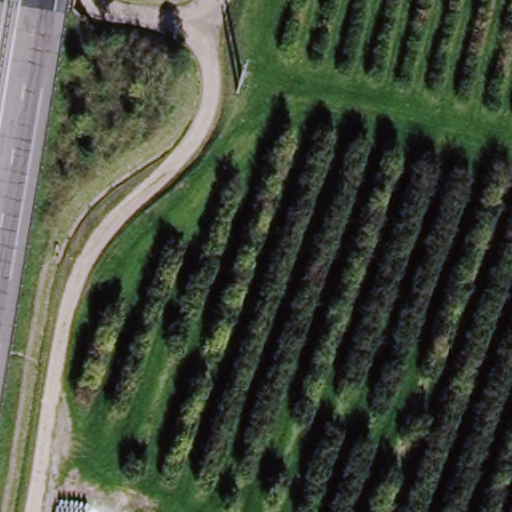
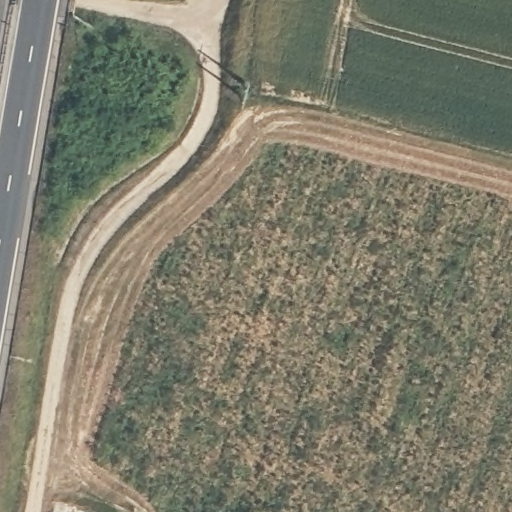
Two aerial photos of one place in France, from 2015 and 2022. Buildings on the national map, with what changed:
[]

